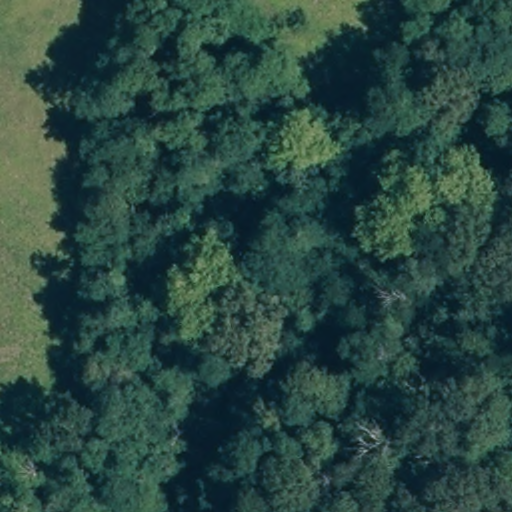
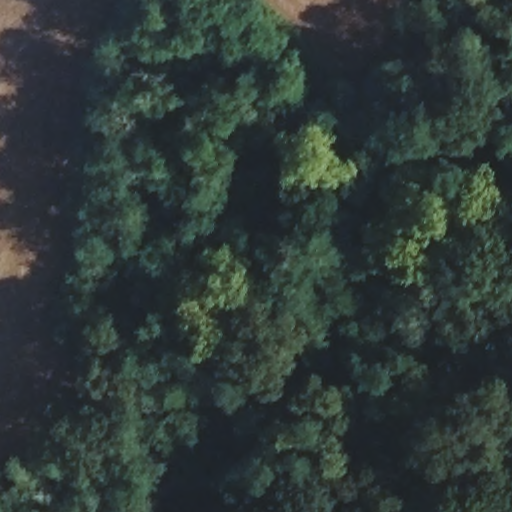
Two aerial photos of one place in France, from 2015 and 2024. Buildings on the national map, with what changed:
[]

